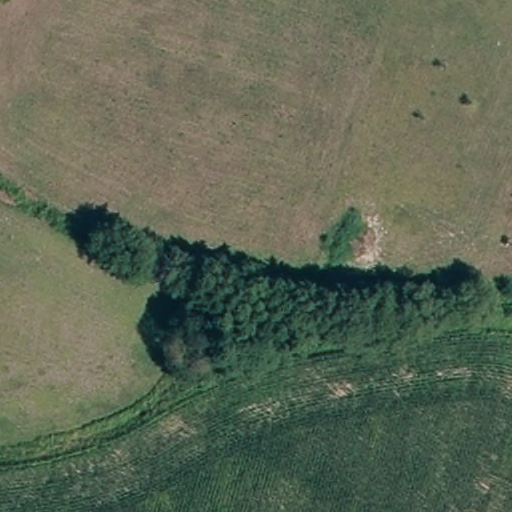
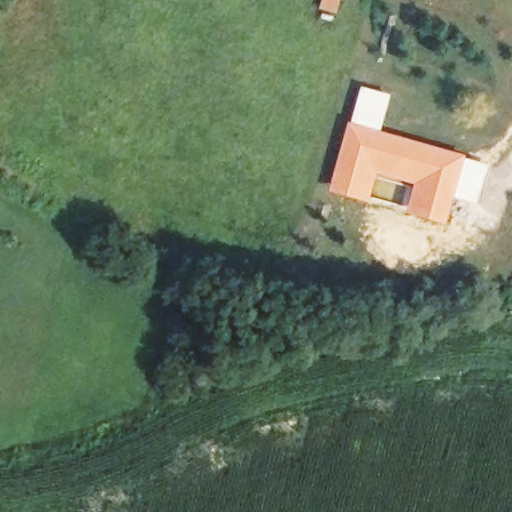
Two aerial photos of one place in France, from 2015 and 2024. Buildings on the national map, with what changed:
new [(361,85),(390,93),(380,130),(349,121),(361,85)]
new [(328,190),(349,121),(380,130),(466,155),(454,197),(446,224),(405,212),(406,209),(370,199),(328,190)]
new [(466,155),(490,164),(478,204),(454,197),(466,155)]

